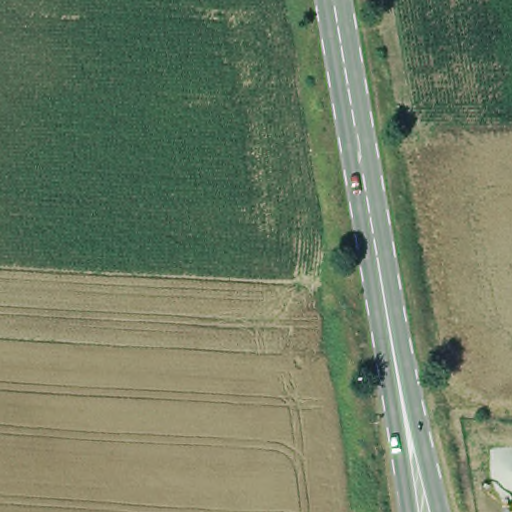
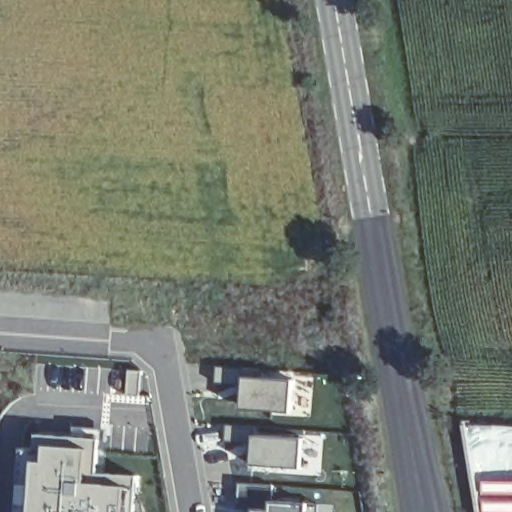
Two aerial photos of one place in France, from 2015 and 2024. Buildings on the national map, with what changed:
new [(245,388),(220,387),(220,365),(267,367),(266,377),(300,379),(298,411),(245,408),(245,388)]
new [(17,443),(31,444),(32,429),(73,432),(72,421),(114,424),(114,454),(102,454),(100,468),(142,471),(139,512),(13,512),(17,443)]
new [(258,427),(259,434),(305,439),(303,468),(253,464),(254,442),(227,439),(227,424),(258,427)]
new [(275,484),(275,500),(308,503),(321,504),(321,512),(249,512),(249,507),(239,504),(240,483),(275,484)]

